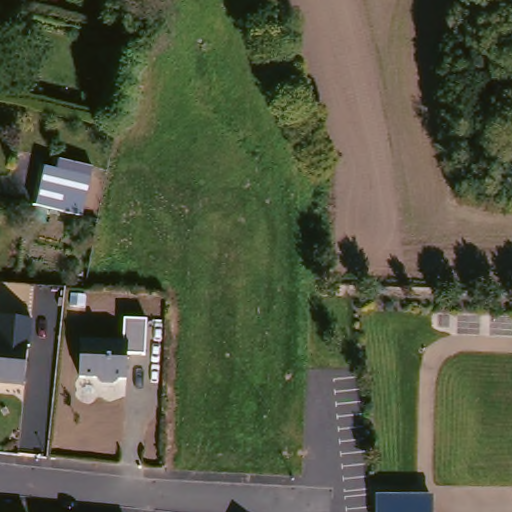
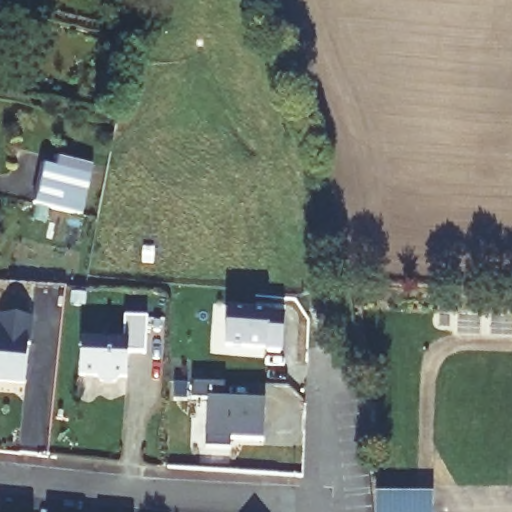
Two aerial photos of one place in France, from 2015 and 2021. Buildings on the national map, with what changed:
unchanged [(122,48),(127,30),(139,32),(134,51),(122,48)]
unchanged [(67,212),(34,205),(43,166),(91,176),(83,215),(67,212)]
new [(226,310),(283,312),(281,348),(225,345),(226,310)]
unchanged [(28,347),(27,347),(22,386),(0,383),(0,317),(31,321),(28,347)]
unchanged [(82,336),(84,336),(86,318),(121,323),(119,340),(128,342),(124,378),(117,377),(112,382),(98,380),(94,374),(77,372),(82,336)]
new [(196,382),(228,383),(227,399),(268,401),(266,440),(236,439),(235,449),(209,447),(211,400),(195,399),(196,382)]
unchanged [(434,512),(375,512),(376,494),(434,494),(434,512)]

